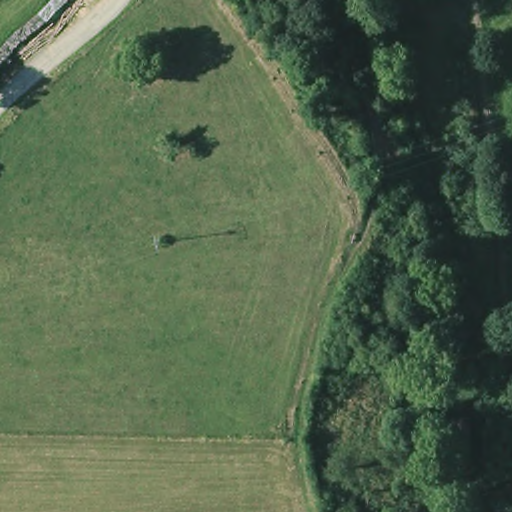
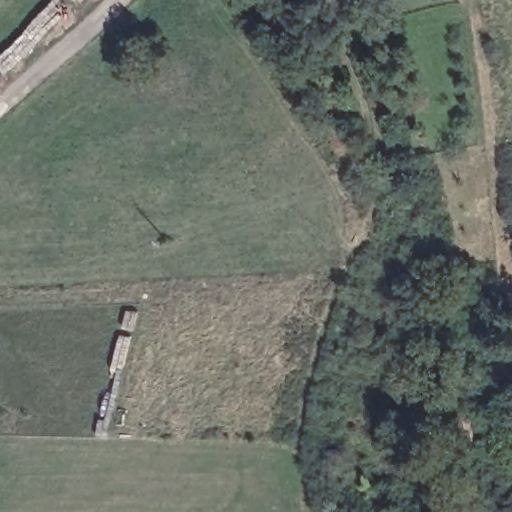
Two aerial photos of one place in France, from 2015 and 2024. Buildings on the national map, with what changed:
unchanged [(449,420),(469,415),(478,448),(459,454),(449,420)]

